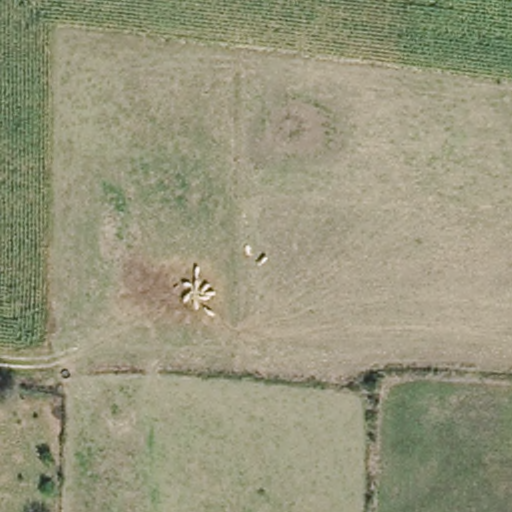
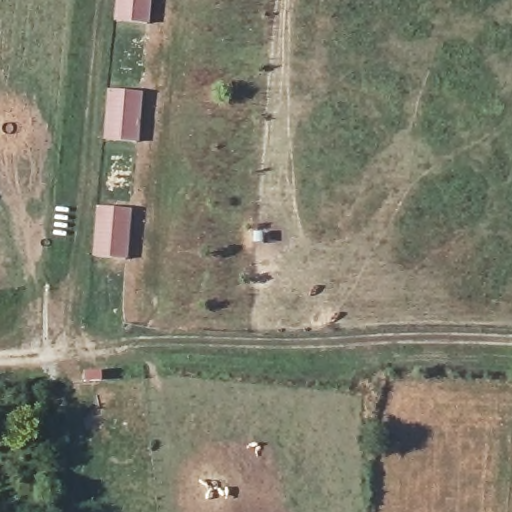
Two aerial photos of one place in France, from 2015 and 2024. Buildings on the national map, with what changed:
new [(117,0),(153,0),(150,23),(115,20),(117,0)]
new [(108,90),(143,94),(139,142),(104,140),(108,90)]
new [(93,257),(97,207),(133,211),(127,259),(93,257)]

